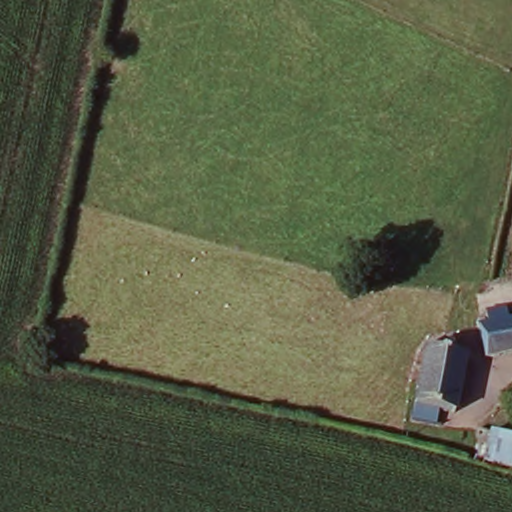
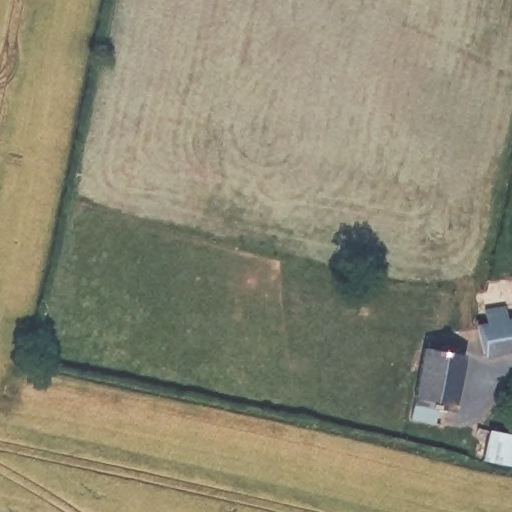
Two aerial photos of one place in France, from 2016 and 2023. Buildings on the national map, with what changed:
unchanged [(492,359),(484,327),(494,324),(512,320),(512,355),(492,359)]
unchanged [(469,366),(456,425),(424,419),(437,361),(469,366)]
unchanged [(498,467),(496,466),(499,457),(484,455),(488,435),(512,439),(512,469),(498,467)]

